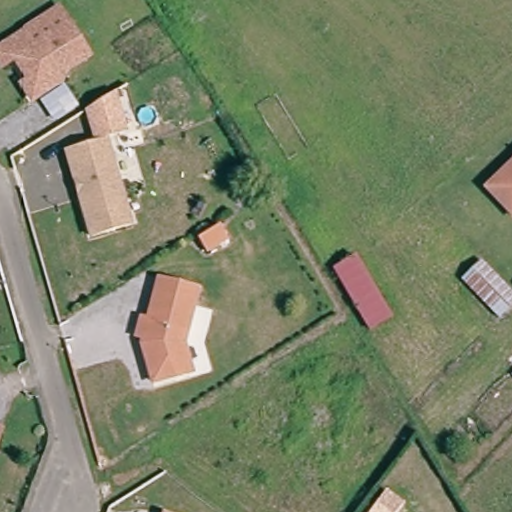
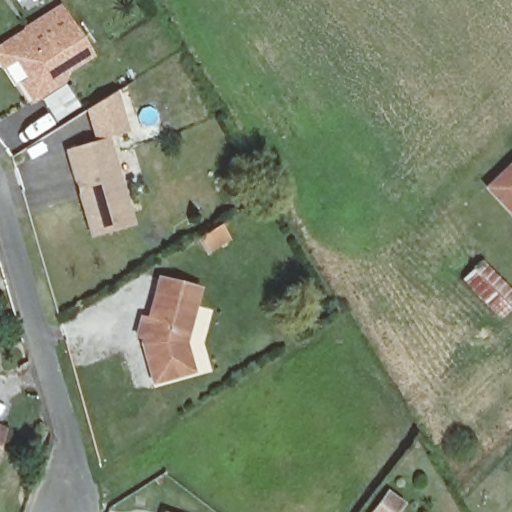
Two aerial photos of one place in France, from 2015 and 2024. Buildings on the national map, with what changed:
unchanged [(40,94),(36,87),(30,78),(36,74),(21,51),(9,59),(0,44),(29,25),(36,27),(43,37),(76,15),(97,47),(61,71),(65,77),(40,94)]
unchanged [(117,91),(128,131),(109,138),(110,141),(93,146),(85,111),(117,91)]
unchanged [(70,154),(93,146),(110,141),(110,142),(136,225),(96,237),(83,195),(79,184),(70,154)]
unchanged [(495,190),(512,169),(512,204),(495,190)]
demolished [(355,255),(391,316),(370,330),(333,266),(355,255)]
unchanged [(512,294),(512,303),(498,317),(461,282),(479,264),(512,294)]
unchanged [(203,289),(190,342),(198,371),(160,382),(149,343),(150,338),(143,336),(147,318),(155,320),(165,280),(203,289)]
unchanged [(0,426),(4,427),(0,439),(0,426)]
unchanged [(389,512),(369,512),(368,511),(384,491),(397,500),(389,512)]
unchanged [(168,512),(163,512),(163,510),(168,512)]

